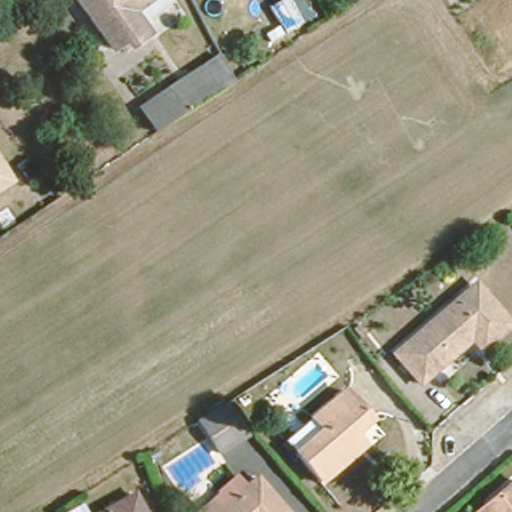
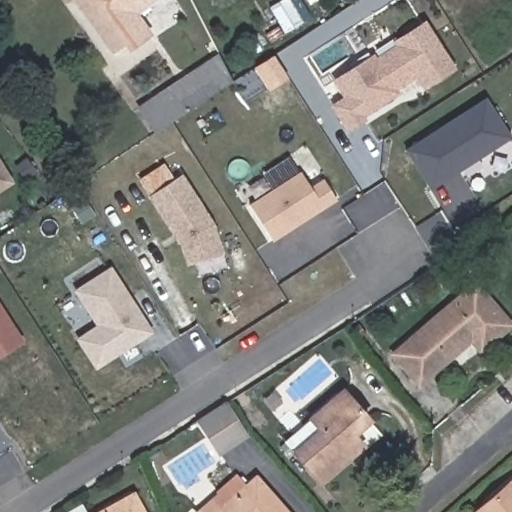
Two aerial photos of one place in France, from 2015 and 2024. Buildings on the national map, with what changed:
unchanged [(125,3),(141,27),(122,41),(119,35),(106,44),(76,0),(129,0),(125,3)]
new [(338,79),(376,54),(378,59),(401,44),(399,40),(427,21),(456,66),(434,80),(428,84),(416,66),(393,81),(399,90),(363,113),(366,117),(352,127),(337,104),(349,96),(338,79)]
new [(230,81),(153,132),(138,107),(216,55),(230,81)]
demolished [(216,90),(169,121),(153,96),(202,62),(216,90)]
new [(431,181),(409,147),(488,96),(512,133),(512,135),(462,167),(434,186),(431,181)]
unchanged [(0,159),(15,182),(0,191),(0,159)]
new [(304,170),(315,186),(327,178),(340,197),(276,239),(253,204),(304,170)]
new [(182,240),(176,230),(153,195),(185,174),(217,223),(226,250),(192,261),(182,231),(185,239),(182,240)]
new [(114,267),(156,330),(101,366),(83,338),(103,325),(80,290),(114,267)]
unchanged [(510,321),(481,346),(469,334),(418,380),(393,350),(474,280),(510,321)]
new [(0,357),(0,300),(26,340),(0,357)]
unchanged [(364,416),(340,435),(350,447),(310,481),(285,450),(316,425),(306,414),(340,386),(364,416)]
unchanged [(251,432),(225,451),(202,417),(229,400),(251,432)]
unchanged [(213,512),(255,475),(286,512),(213,512)]
unchanged [(493,512),(485,502),(512,479),(512,512),(493,512)]
unchanged [(98,512),(130,491),(144,512),(98,512)]

